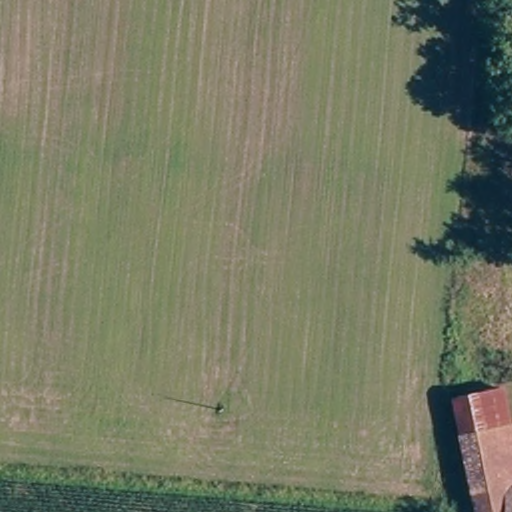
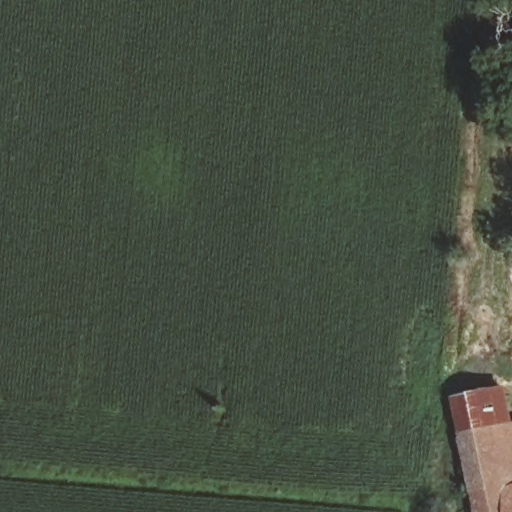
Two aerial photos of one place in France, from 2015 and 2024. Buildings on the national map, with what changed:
unchanged [(501,389),(508,424),(512,424),(512,512),(479,512),(455,397),(501,389)]

